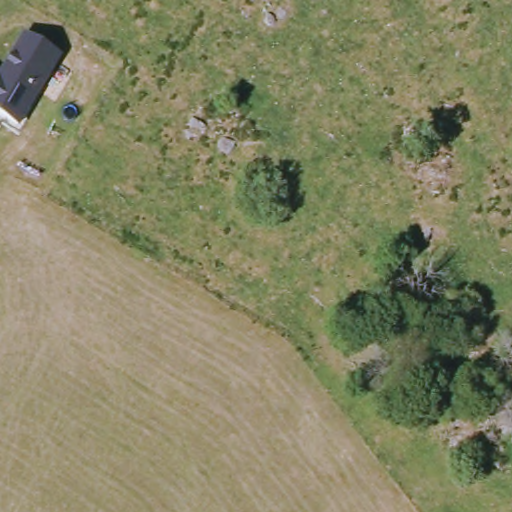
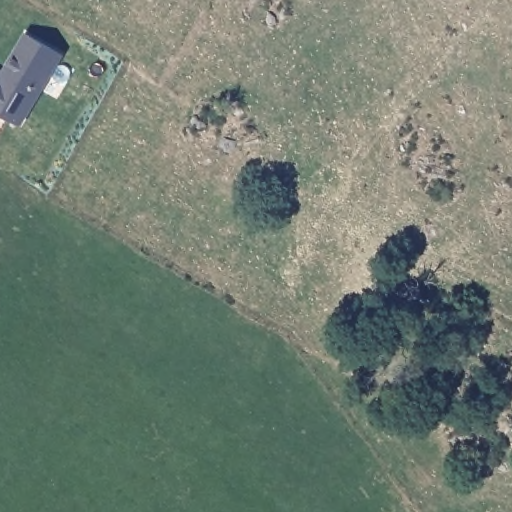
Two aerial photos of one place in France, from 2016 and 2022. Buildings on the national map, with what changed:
unchanged [(27,39),(62,58),(22,126),(0,113),(0,79),(3,81),(27,39)]

